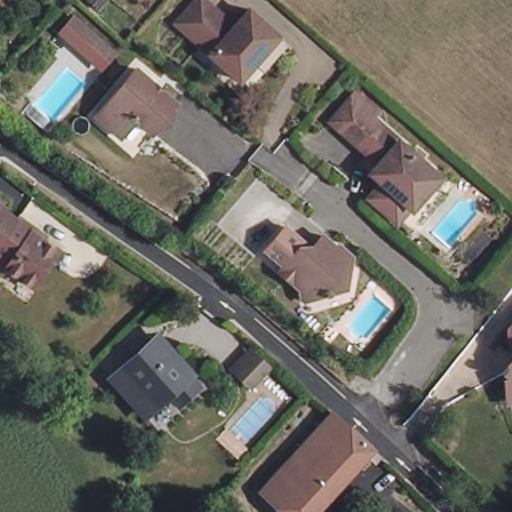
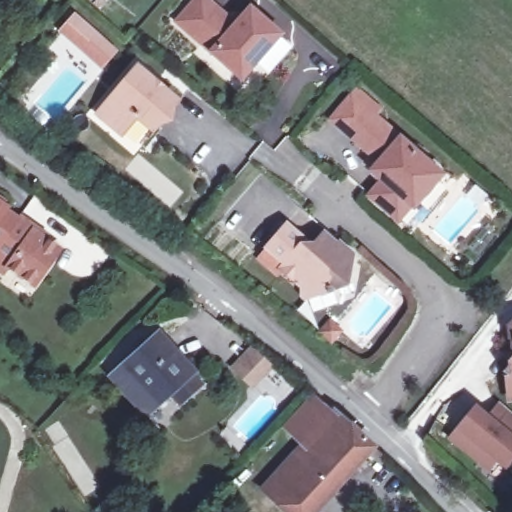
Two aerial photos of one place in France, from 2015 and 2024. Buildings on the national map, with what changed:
unchanged [(257,11),(287,39),(248,84),(195,36),(183,25),(209,0),(221,10),(242,29),(257,11)]
new [(76,16),(114,49),(100,66),(62,34),(76,16)]
unchanged [(88,115),(99,101),(108,100),(107,92),(127,67),(170,101),(145,131),(128,118),(113,136),(88,115)]
unchanged [(334,117),(360,87),(382,105),(375,112),(355,135),(334,117)]
unchanged [(394,212),(372,194),(385,179),(375,169),(382,159),(355,135),(375,112),(442,170),(440,173),(447,179),(425,205),(418,199),(415,202),(402,219),(394,212)]
unchanged [(35,286),(9,270),(4,276),(0,274),(0,202),(7,206),(5,210),(15,217),(17,215),(37,227),(34,231),(60,248),(35,286)]
unchanged [(312,296),(276,266),(282,260),(264,244),(284,220),(302,235),(310,242),(322,229),(335,240),(338,282),(327,296),(330,298),(325,302),(324,300),(316,310),(312,296)]
unchanged [(512,329),(512,338),(507,335),(512,329)]
unchanged [(160,333),(187,363),(192,368),(203,381),(182,401),(170,387),(155,400),(125,365),(160,333)]
unchanged [(509,383),(502,377),(512,365),(512,404),(510,405),(509,383)]
new [(512,462),(505,469),(497,462),(487,473),(448,438),(455,430),(475,404),(488,415),(499,402),(512,414),(512,462)]
unchanged [(265,490),(337,412),(355,428),(374,446),(384,455),(377,463),(367,455),(315,512),(287,512),(282,507),(265,490)]

